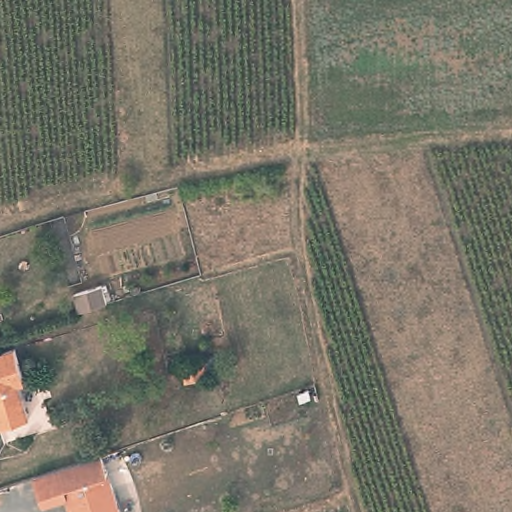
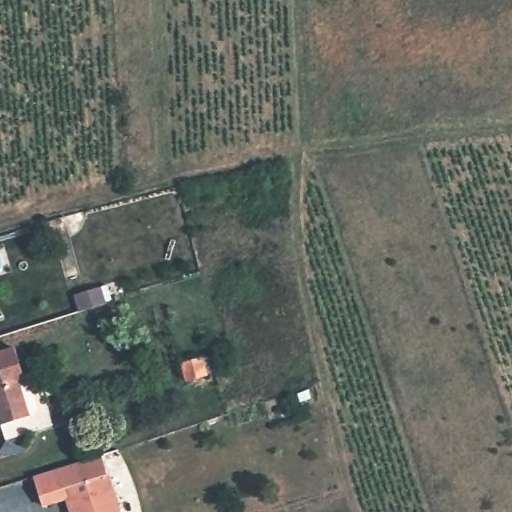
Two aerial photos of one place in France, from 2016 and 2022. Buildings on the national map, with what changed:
unchanged [(27,381),(20,383),(30,417),(1,426),(0,421),(0,354),(16,348),(27,381)]
unchanged [(105,455),(124,512),(75,512),(71,499),(47,507),(38,477),(105,455)]

